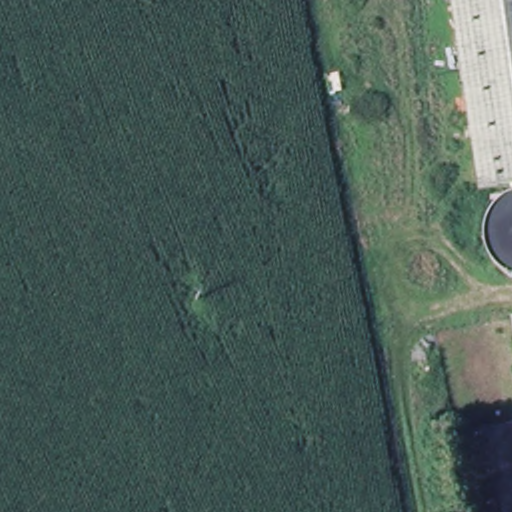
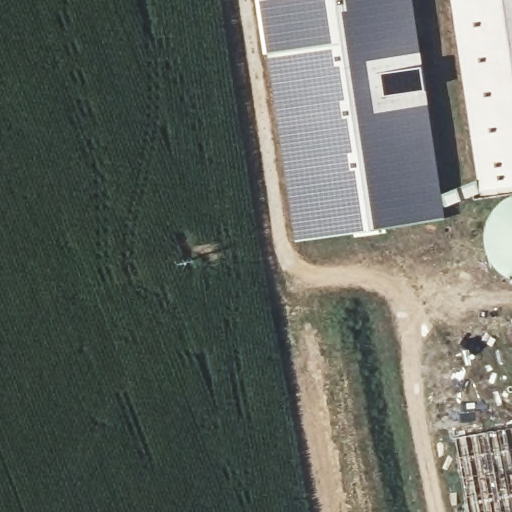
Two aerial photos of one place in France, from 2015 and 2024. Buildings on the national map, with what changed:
new [(295,242),(259,0),(414,0),(446,219),(295,242)]
demolished [(478,194),(449,0),(512,0),(512,189),(478,194)]
new [(481,186),(454,0),(512,0),(512,182),(481,186)]
new [(505,279),(494,269),(488,263),(483,248),(484,228),(492,211),(503,202),(512,198),(512,282),(505,279)]
demolished [(511,318),(512,317),(512,320),(511,318)]

